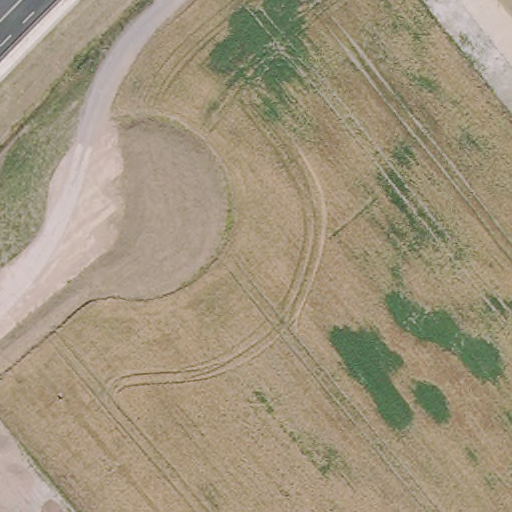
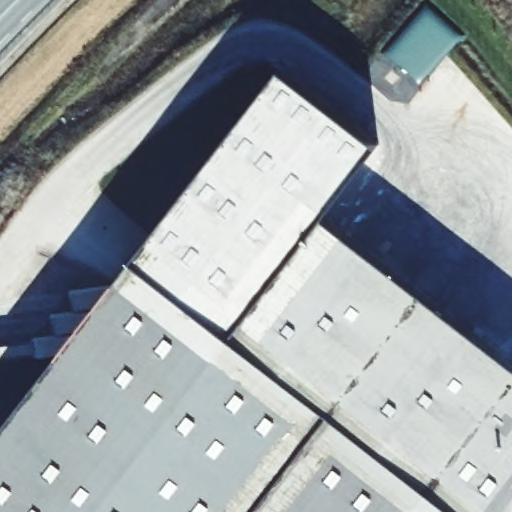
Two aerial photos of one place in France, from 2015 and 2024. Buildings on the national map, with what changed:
new [(377,142),(322,217),(236,343),(132,264),(280,68),(377,142)]
new [(0,512),(0,435),(132,264),(236,343),(322,217),(512,359),(512,512),(0,512)]

